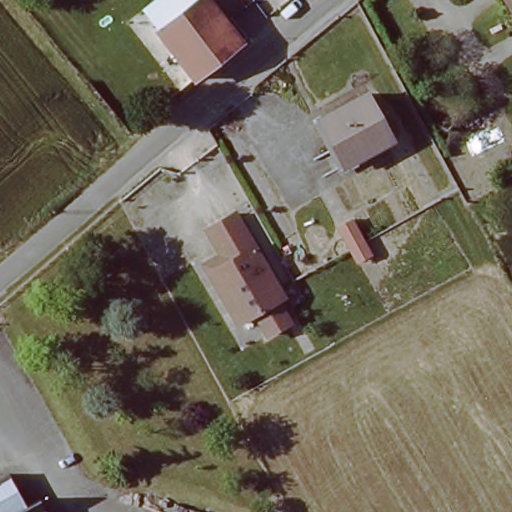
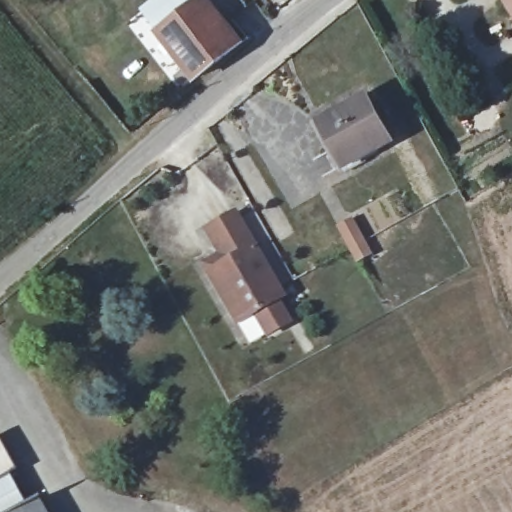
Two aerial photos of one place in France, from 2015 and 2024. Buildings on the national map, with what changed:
unchanged [(115,15),(136,0),(197,0),(141,47),(115,15)]
unchanged [(241,42),(186,87),(159,57),(153,62),(141,47),(197,0),(207,0),(241,42)]
unchanged [(505,0),(512,0),(512,13),(505,0)]
unchanged [(359,91),(392,139),(348,169),(316,121),(359,91)]
unchanged [(235,220),(281,305),(274,308),(286,330),(264,342),(253,320),(235,330),(207,279),(203,270),(220,261),(206,235),(235,220)]
unchanged [(39,500),(45,512),(0,512),(0,479),(9,474),(26,507),(39,500)]

